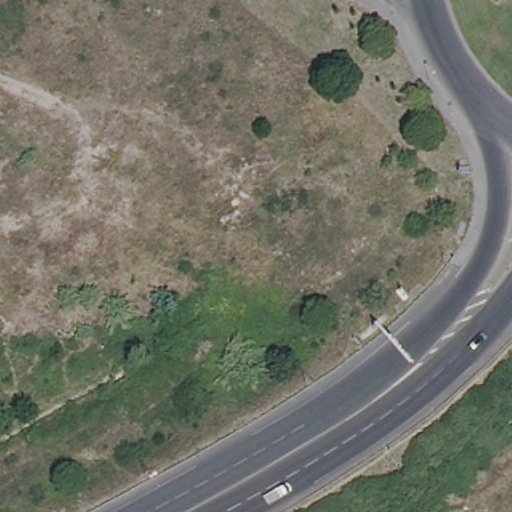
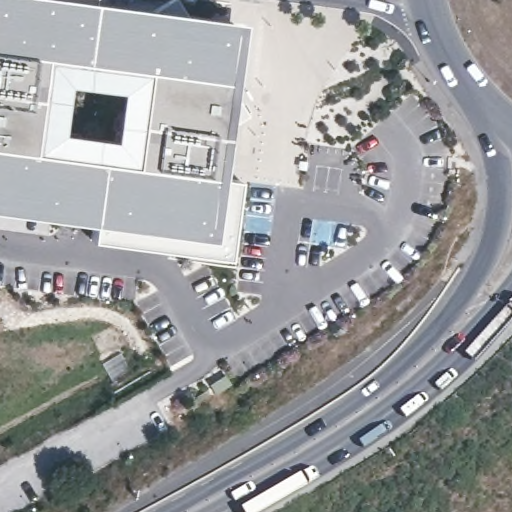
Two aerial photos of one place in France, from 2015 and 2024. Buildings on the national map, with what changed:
new [(92,3),(243,23),(233,92),(250,118),(228,131),(222,179),(241,180),(227,256),(92,241),(95,222),(0,211),(0,0),(93,0),(92,3)]

